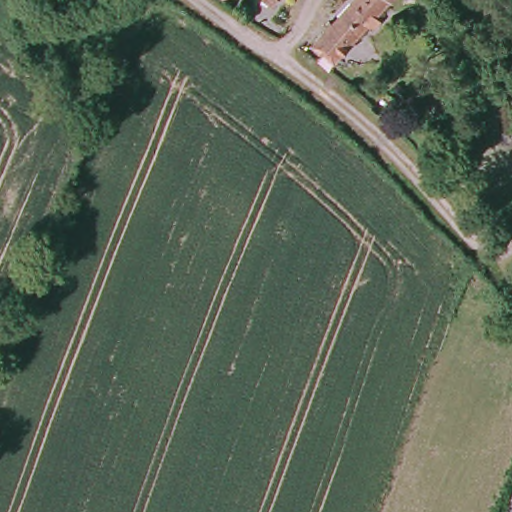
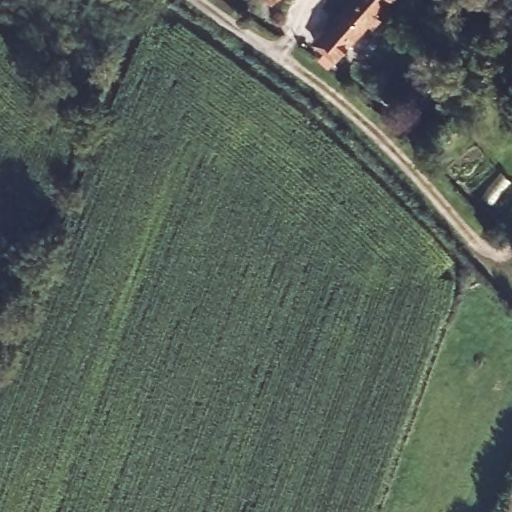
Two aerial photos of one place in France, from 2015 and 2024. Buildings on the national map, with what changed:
unchanged [(262,0),(277,0),(272,7),(262,0)]
unchanged [(330,29),(353,0),(388,0),(350,45),(341,56),(321,41),(330,29)]

